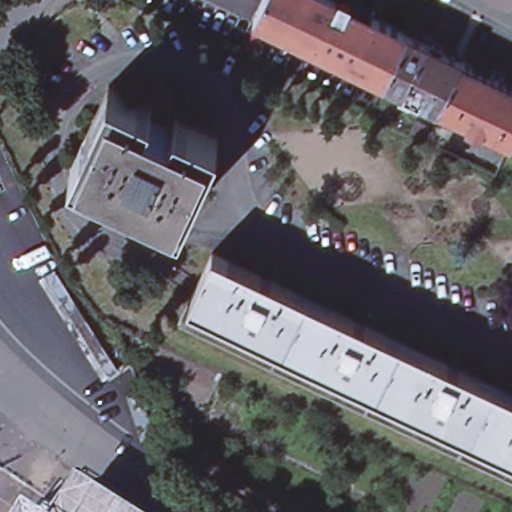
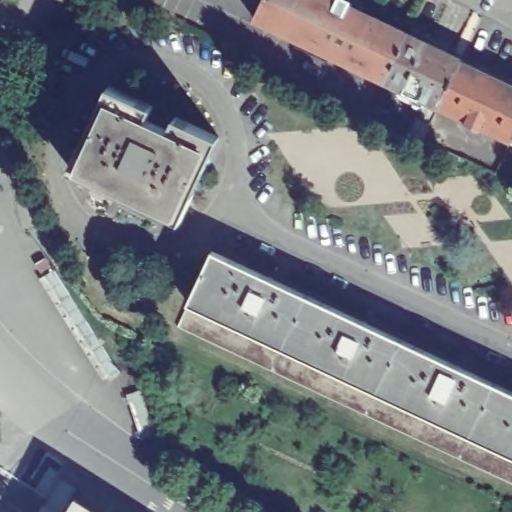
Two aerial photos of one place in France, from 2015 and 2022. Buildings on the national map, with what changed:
unchanged [(255,22),(266,0),(334,0),(408,36),(386,84),(255,22)]
unchanged [(407,134),(422,101),(386,84),(408,36),(411,31),(456,53),(455,58),(462,61),(438,109),(423,141),(407,134)]
unchanged [(511,144),(492,135),(438,109),(462,61),(512,85),(512,142),(511,144)]
unchanged [(152,108),(146,121),(171,132),(177,119),(219,139),(180,222),(71,170),(110,88),(152,108)]
unchanged [(442,150),(451,131),(486,147),(492,135),(511,144),(496,176),(442,150)]
unchanged [(182,320),(193,297),(218,244),(512,380),(512,472),(182,320)]
unchanged [(86,503),(80,512),(69,512),(78,497),(86,503)]

